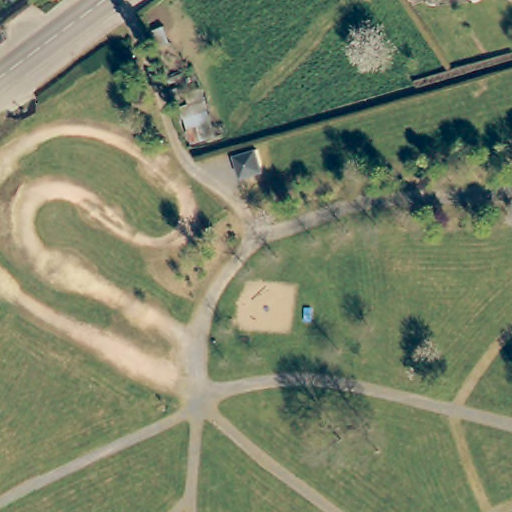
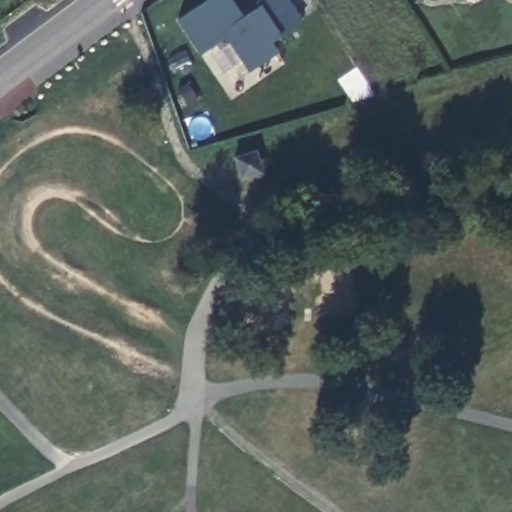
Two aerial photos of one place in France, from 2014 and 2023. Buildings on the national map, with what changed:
new [(232,0),(243,15),(259,5),(256,1),(256,0),(288,0),(302,21),(271,42),(277,51),(250,71),(224,37),(201,54),(176,19),(204,0),(232,0)]
unchanged [(258,168),(237,174),(231,153),(252,147),(258,168)]

